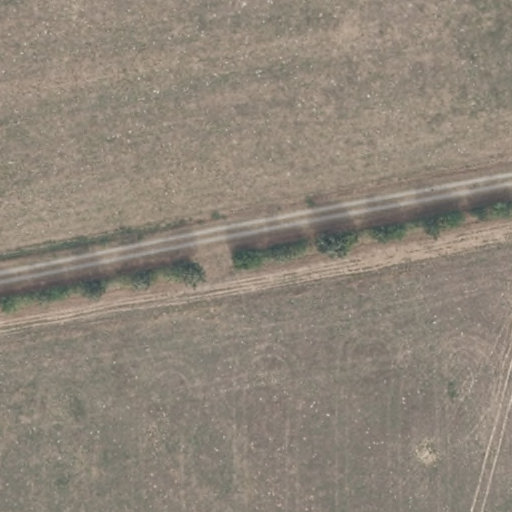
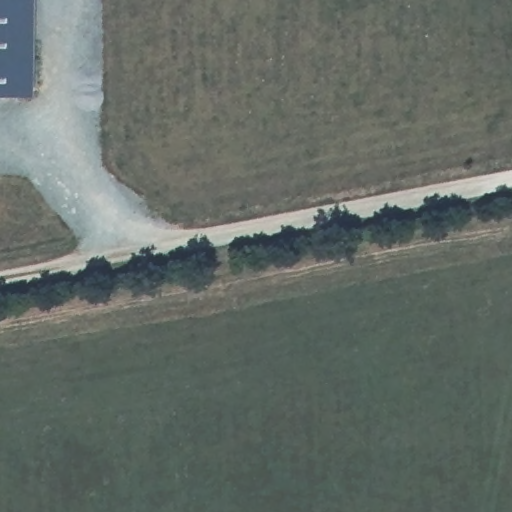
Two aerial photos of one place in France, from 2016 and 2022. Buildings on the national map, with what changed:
new [(0,95),(0,0),(28,0),(27,96),(0,95)]

